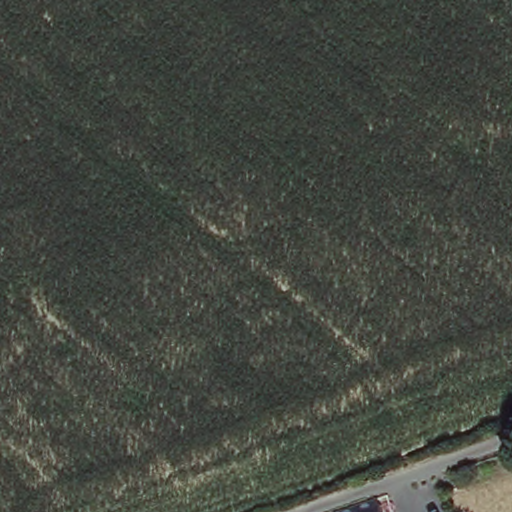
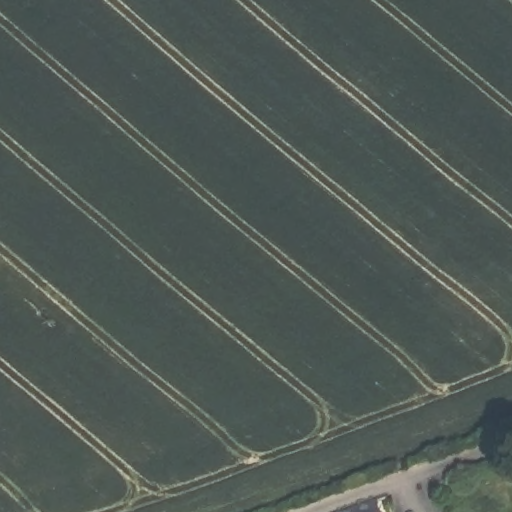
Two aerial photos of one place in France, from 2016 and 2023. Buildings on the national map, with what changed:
unchanged [(358,508),(358,512),(346,512),(358,508)]
unchanged [(382,509),(382,512),(368,512),(382,509)]

